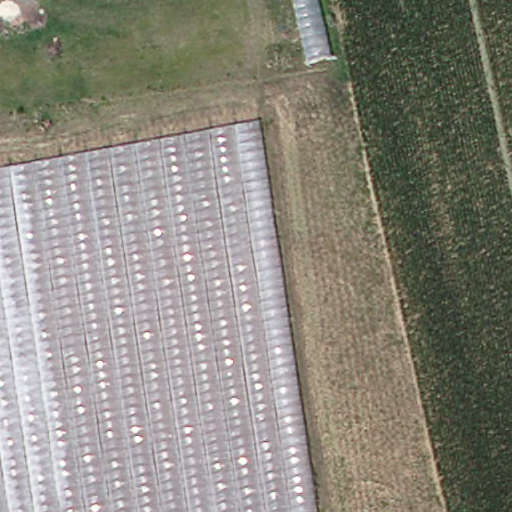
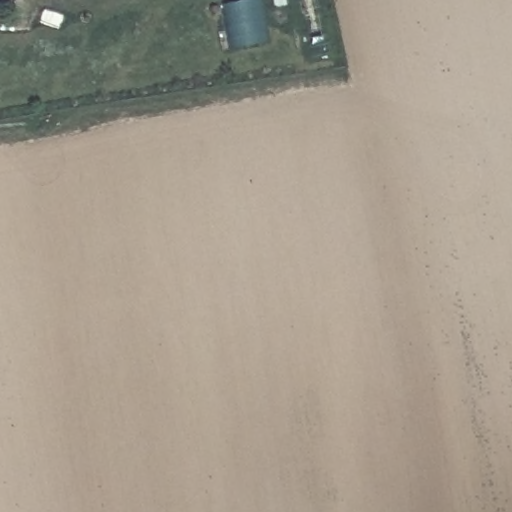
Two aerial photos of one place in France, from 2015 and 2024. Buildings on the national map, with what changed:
demolished [(262,115),(324,512),(0,512),(0,166),(262,115)]

